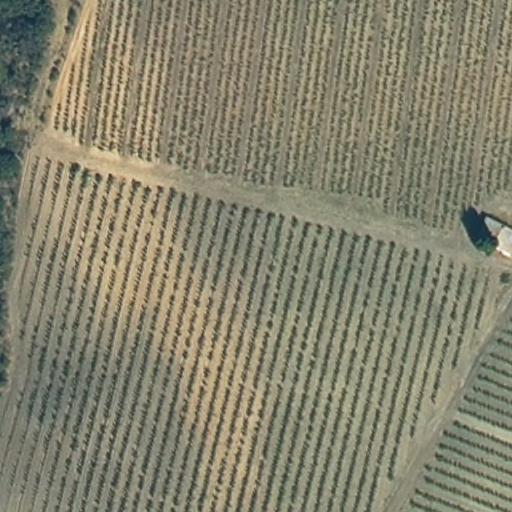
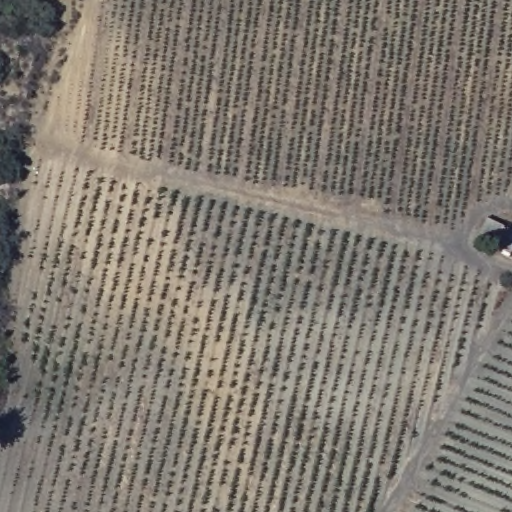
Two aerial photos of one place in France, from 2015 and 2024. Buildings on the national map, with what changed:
unchanged [(477,241),(487,210),(512,216),(512,250),(477,241)]

